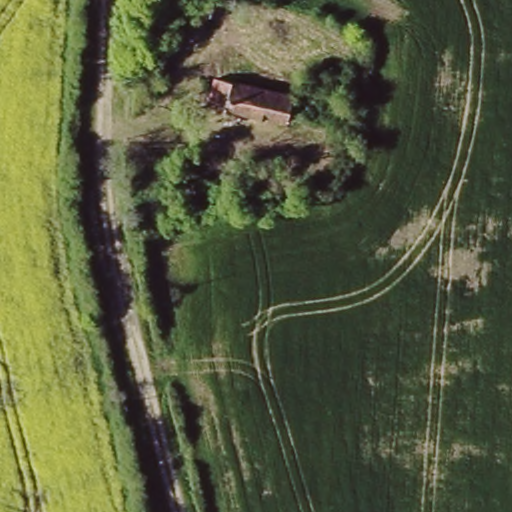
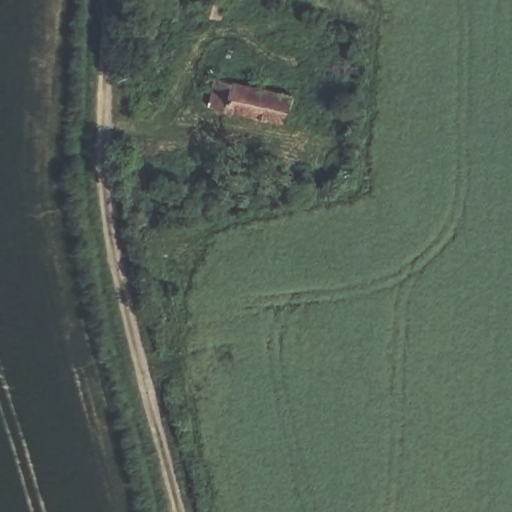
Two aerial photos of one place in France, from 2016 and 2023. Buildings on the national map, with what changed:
unchanged [(286,121),(211,109),(217,77),(231,79),(291,89),(286,121)]
unchanged [(304,186),(272,188),(271,171),(303,169),(304,186)]

